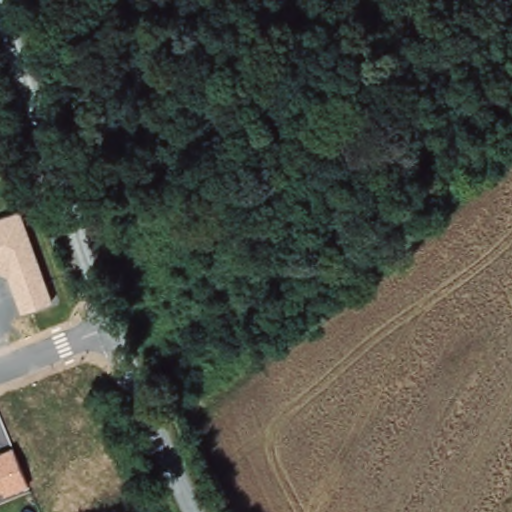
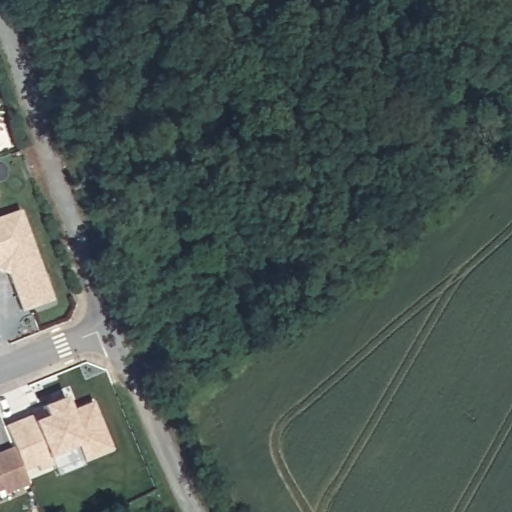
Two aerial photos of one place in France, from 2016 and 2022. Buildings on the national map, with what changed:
unchanged [(18,311),(5,274),(0,272),(0,216),(20,209),(51,298),(18,311)]
new [(112,448),(84,460),(77,445),(49,458),(52,464),(39,470),(37,465),(20,471),(10,446),(14,445),(5,425),(44,411),(42,406),(65,396),(70,410),(92,401),(112,448)]
unchanged [(10,446),(26,484),(4,494),(2,488),(0,489),(0,450),(10,446)]

